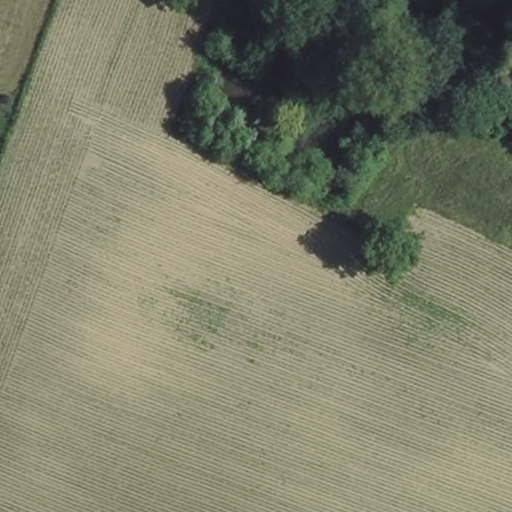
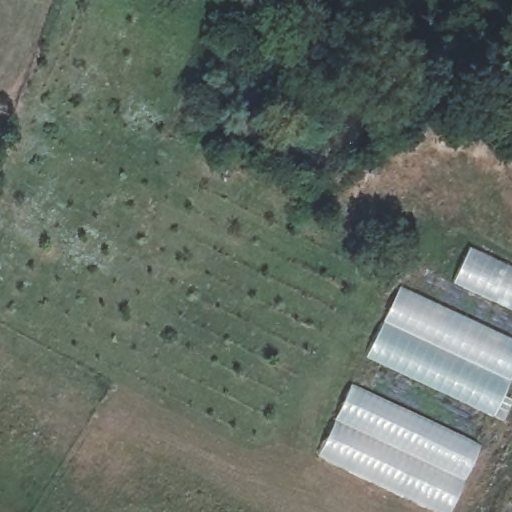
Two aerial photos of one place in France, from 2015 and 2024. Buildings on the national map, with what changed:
new [(452,282),(470,246),(512,267),(512,310),(452,282)]
new [(512,339),(512,371),(492,413),(365,356),(398,284),(512,339)]
new [(420,413),(482,444),(451,512),(437,512),(317,455),(351,382),(420,413)]

